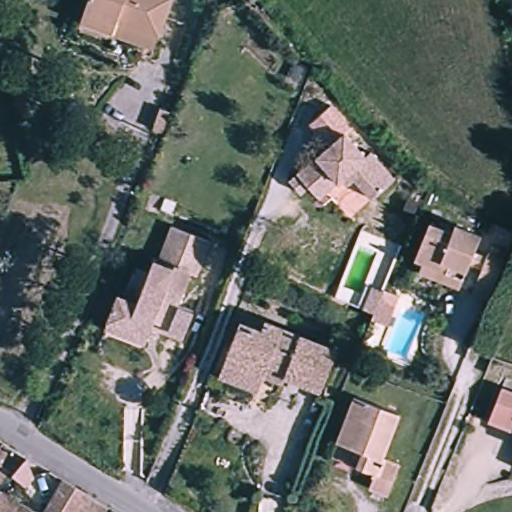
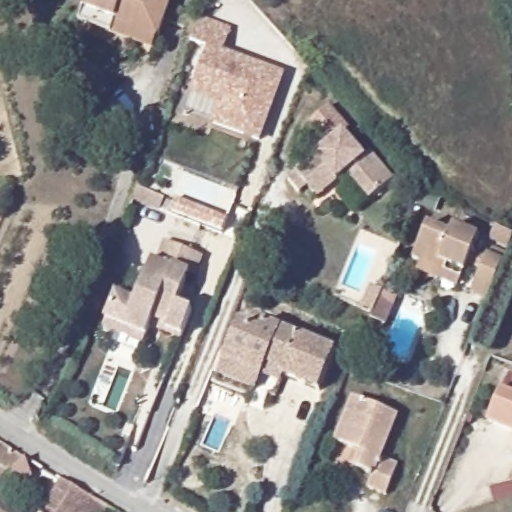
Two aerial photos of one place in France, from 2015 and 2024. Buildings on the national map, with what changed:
unchanged [(77,20),(84,0),(171,0),(159,32),(153,48),(114,34),(77,20)]
new [(209,51),(193,45),(200,21),(232,32),(225,55),(236,58),(242,60),(285,74),(264,140),(218,126),(225,105),(225,103),(224,106),(195,96),(197,89),(209,51)]
unchanged [(306,180),(297,187),(287,174),(345,126),(365,150),(370,146),(394,174),(370,193),(353,172),(346,178),(340,172),(327,182),(316,192),(306,180)]
unchanged [(485,262),(487,259),(500,264),(485,304),(470,297),(478,276),(463,270),(459,280),(441,273),(438,280),(406,266),(423,225),(447,235),(450,227),(479,239),(472,256),(485,262)]
unchanged [(510,239),(506,250),(487,243),(493,229),(510,239)]
unchanged [(104,325),(107,317),(118,290),(136,297),(153,253),(159,255),(166,237),(203,251),(195,272),(188,269),(177,300),(192,306),(182,332),(166,326),(165,329),(150,324),(147,332),(144,340),(104,325)]
new [(365,301),(374,280),(388,286),(402,291),(391,319),(377,314),(379,307),(365,301)]
unchanged [(220,377),(228,357),(242,324),(264,333),(270,319),(341,349),(325,389),(289,374),(286,382),(265,373),(257,392),(220,377)]
unchanged [(512,397),(512,436),(496,429),(485,424),(499,391),(512,397)]
unchanged [(378,458),(395,466),(381,496),(362,487),(368,474),(354,467),(361,454),(333,440),(354,396),(397,417),(378,458)]
unchanged [(8,474),(3,471),(0,474),(0,445),(21,459),(8,474)]
unchanged [(58,480),(82,495),(101,506),(96,512),(39,512),(58,480)]
unchanged [(0,495),(25,510),(27,512),(0,512),(0,495)]

